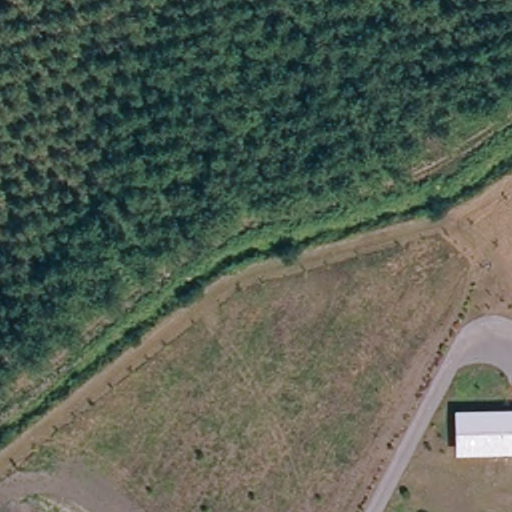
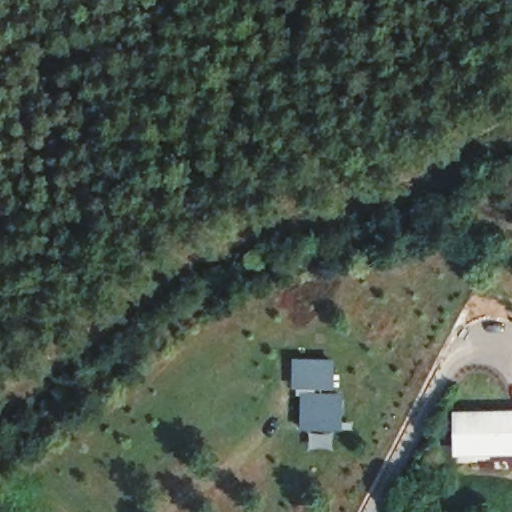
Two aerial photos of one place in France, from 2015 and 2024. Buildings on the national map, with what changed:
new [(292,357),(336,359),(335,391),(301,390),(291,390),(292,357)]
new [(301,390),(335,391),(344,391),(343,432),(299,430),(301,390)]
unchanged [(512,456),(457,457),(455,411),(512,410),(512,456)]

